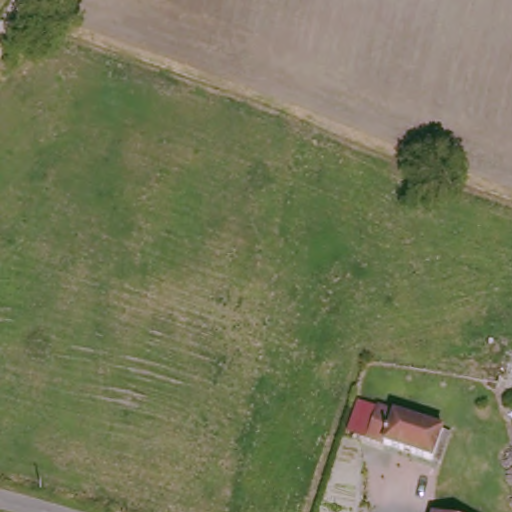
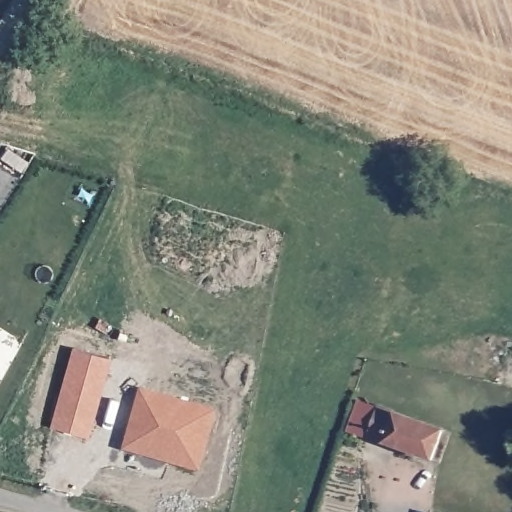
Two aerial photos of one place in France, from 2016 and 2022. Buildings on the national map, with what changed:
new [(70,350),(105,360),(89,420),(83,439),(48,429),(53,410),(70,350)]
new [(138,392),(177,402),(170,427),(132,416),(138,392)]
unchanged [(428,457),(420,454),(357,430),(369,401),(432,425),(440,427),(428,457)]
new [(122,450),(132,416),(170,427),(177,402),(213,413),(197,471),(165,462),(165,460),(158,457),(157,461),(122,451),(122,450)]

